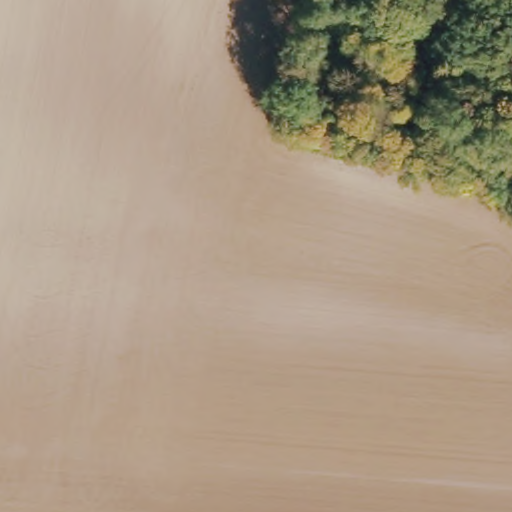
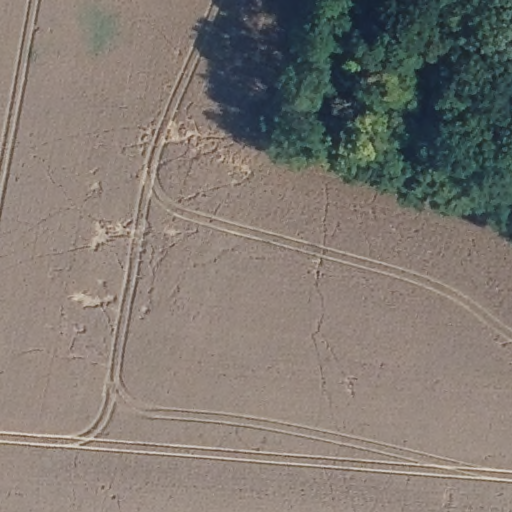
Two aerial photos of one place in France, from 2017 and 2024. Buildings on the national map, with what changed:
unchanged [(434,143),(427,159),(407,149),(415,134),(434,143)]

